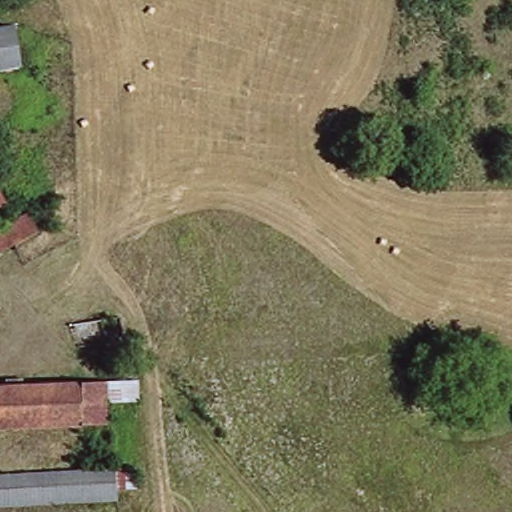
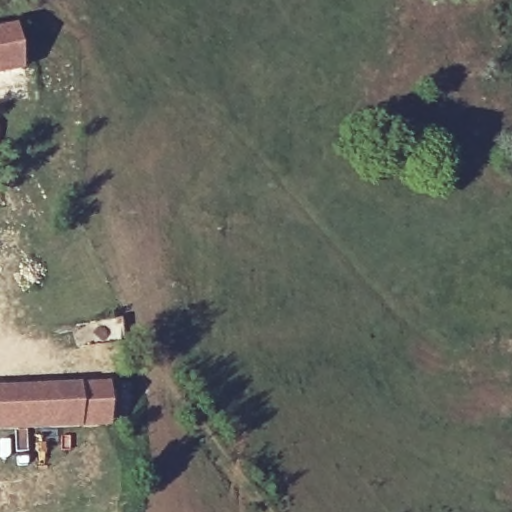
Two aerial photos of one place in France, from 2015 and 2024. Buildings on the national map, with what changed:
unchanged [(26,68),(0,73),(0,30),(20,26),(26,68)]
unchanged [(0,122),(5,121),(7,142),(0,143),(0,122)]
demolished [(13,204),(0,210),(0,180),(2,179),(13,204)]
demolished [(0,230),(33,212),(43,232),(0,256),(0,230)]
unchanged [(117,425),(87,427),(0,430),(0,385),(86,382),(148,380),(148,400),(117,404),(117,425)]
demolished [(126,501),(0,507),(0,475),(122,468),(143,467),(145,488),(125,490),(126,501)]

